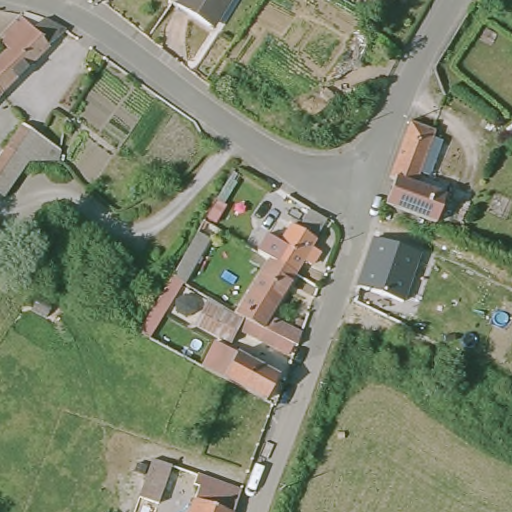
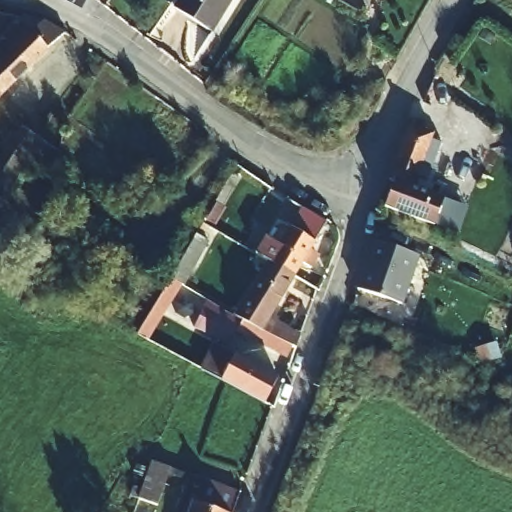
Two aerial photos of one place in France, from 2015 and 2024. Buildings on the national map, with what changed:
unchanged [(200,0),(198,3),(194,0),(200,0)]
unchanged [(198,3),(200,0),(228,0),(218,15),(198,3)]
unchanged [(0,57),(10,45),(0,37),(22,10),(27,10),(36,14),(45,17),(64,30),(2,93),(0,92),(0,57)]
unchanged [(0,95),(0,92),(2,93),(0,95)]
unchanged [(16,130),(10,125),(15,119),(21,124),(42,139),(61,151),(47,172),(27,159),(23,165),(0,196),(0,152),(0,151),(16,130)]
unchanged [(433,132),(432,139),(441,141),(428,178),(419,174),(415,187),(443,198),(435,224),(382,204),(391,177),(389,174),(408,123),(433,132)]
unchanged [(268,262),(252,254),(261,240),(275,249),(293,223),(300,227),(311,210),(327,219),(292,275),(268,262)]
unchanged [(202,244),(177,288),(165,281),(190,237),(202,244)]
unchanged [(370,238),(419,253),(402,301),(353,285),(370,238)]
unchanged [(298,348),(287,343),(237,318),(268,262),(292,275),(270,315),(303,335),(298,348)]
unchanged [(237,318),(287,343),(280,356),(237,334),(232,344),(215,334),(225,312),(237,318)]
unchanged [(203,372),(208,363),(227,374),(236,359),(277,380),(265,403),(252,397),(203,372)]
unchanged [(158,504),(150,501),(147,509),(138,506),(157,459),(173,465),(158,504)]
unchanged [(203,486),(195,484),(199,474),(242,489),(234,512),(194,512),(203,486)]

